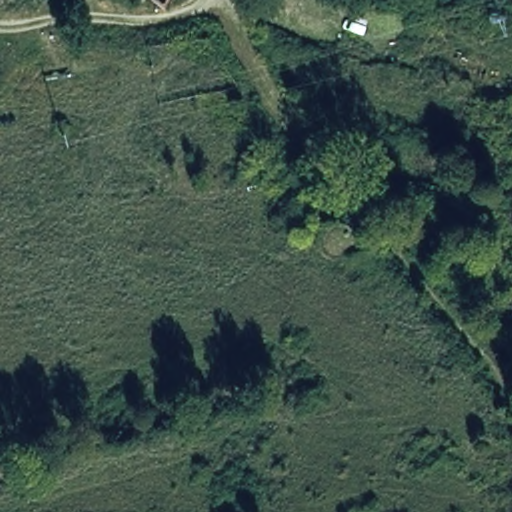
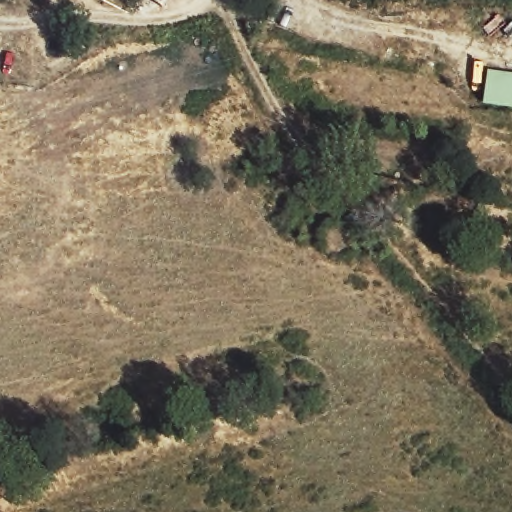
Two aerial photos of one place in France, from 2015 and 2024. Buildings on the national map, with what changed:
new [(489,72),(512,76),(512,108),(484,104),(489,72)]

